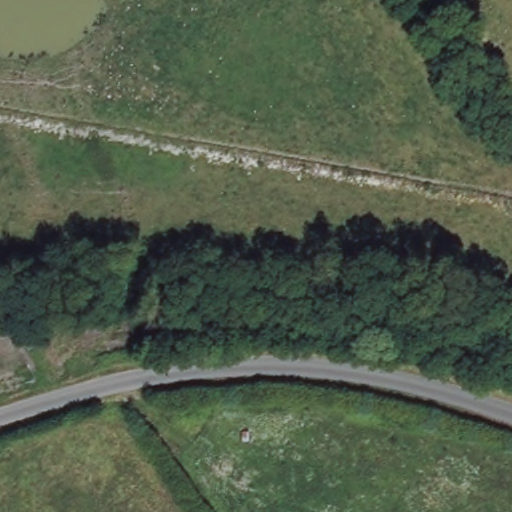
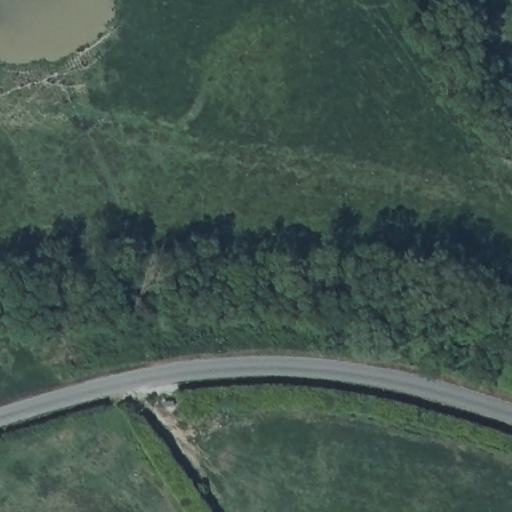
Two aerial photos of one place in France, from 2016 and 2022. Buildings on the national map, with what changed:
[]

